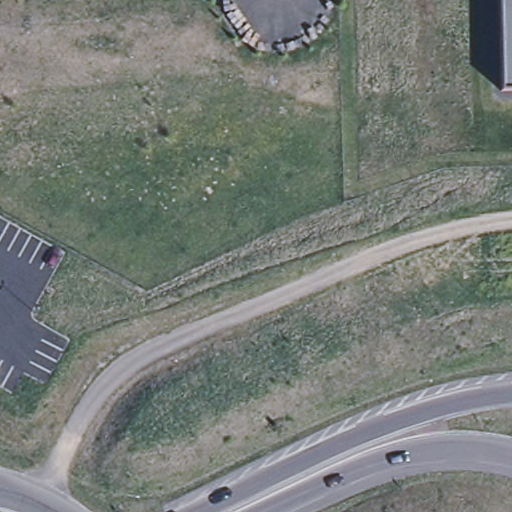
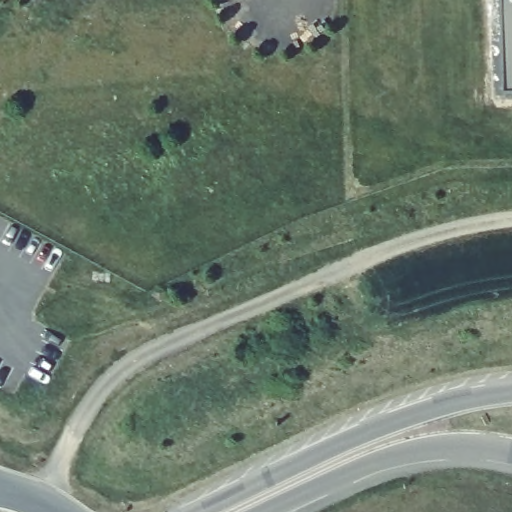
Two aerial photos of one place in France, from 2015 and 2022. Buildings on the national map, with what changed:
unchanged [(501,90),(499,0),(512,0),(512,90),(501,90)]

